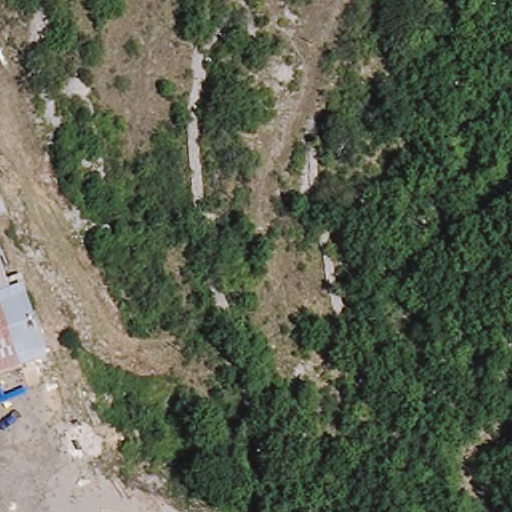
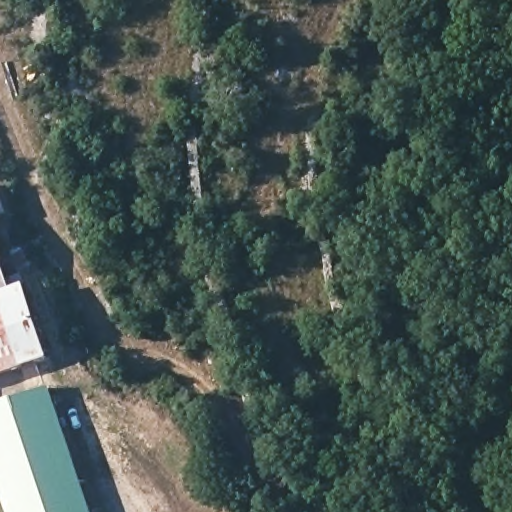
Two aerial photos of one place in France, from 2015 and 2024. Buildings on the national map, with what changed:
unchanged [(28,282),(49,357),(0,370),(0,254),(12,288),(28,282)]
new [(0,483),(0,403),(50,386),(92,512),(10,512),(0,483)]

